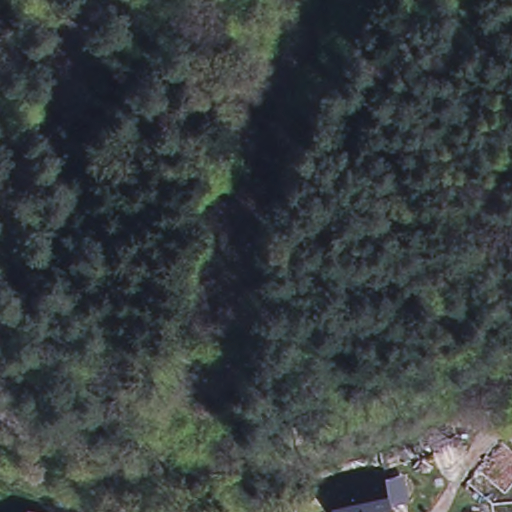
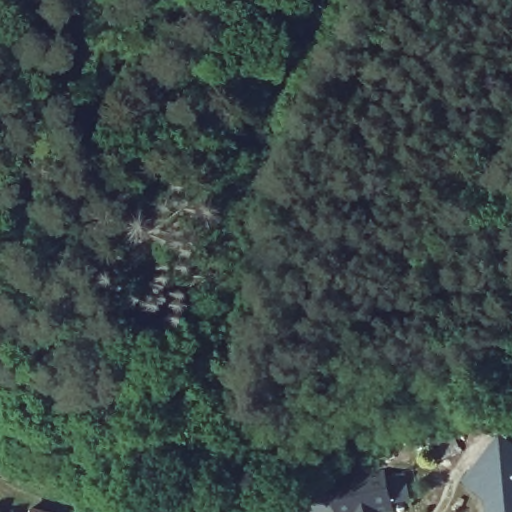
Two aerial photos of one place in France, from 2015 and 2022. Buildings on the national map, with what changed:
new [(512,453),(512,512),(493,512),(492,506),(468,485),(501,445),(512,453)]
unchanged [(378,510),(378,512),(339,512),(332,482),(383,470),(384,475),(402,471),(407,498),(390,502),(391,507),(378,510)]

